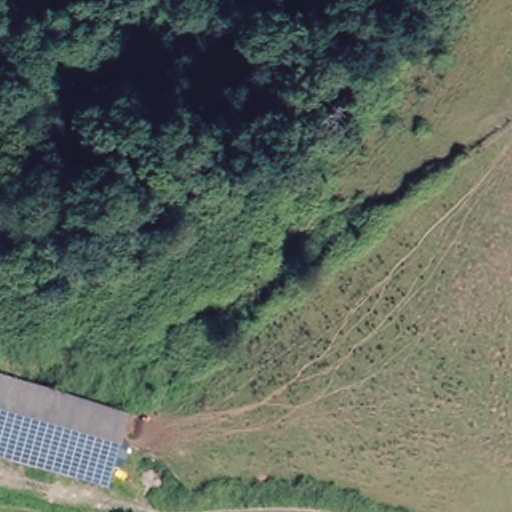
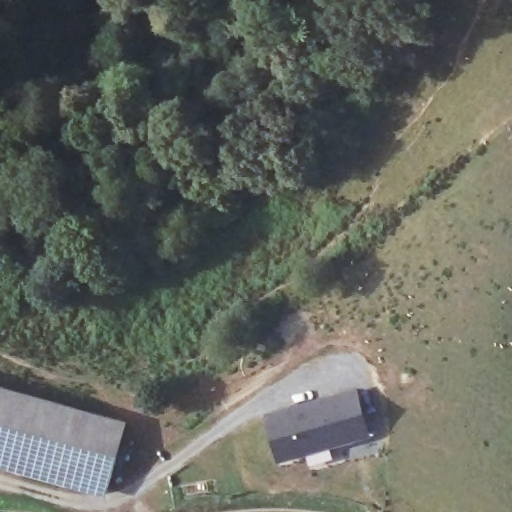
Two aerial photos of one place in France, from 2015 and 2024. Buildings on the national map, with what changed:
unchanged [(112,483),(0,455),(0,386),(127,419),(112,483)]
new [(369,434),(278,459),(266,414),(356,389),(369,434)]

